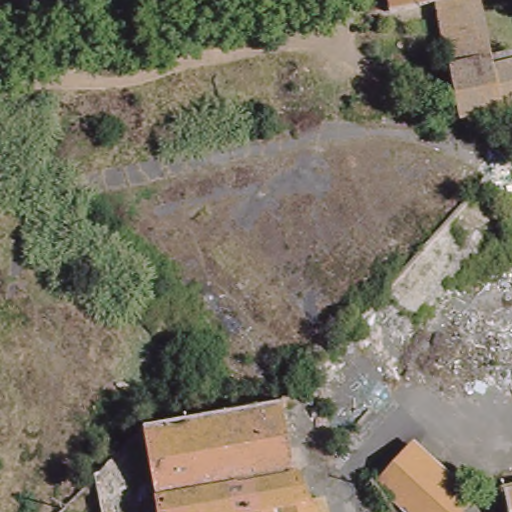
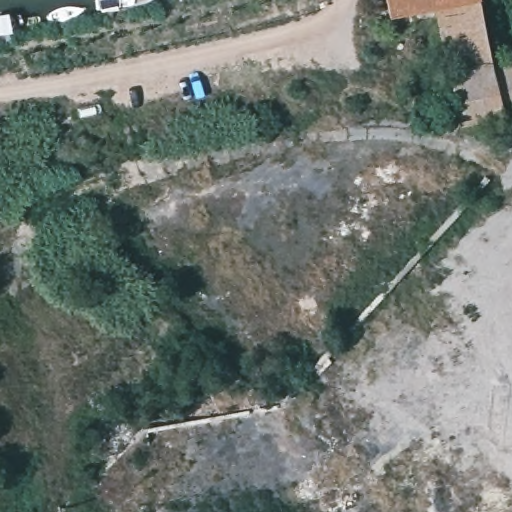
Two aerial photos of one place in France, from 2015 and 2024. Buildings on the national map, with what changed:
unchanged [(432,5),(395,12),(393,4),(392,0),(456,0),(432,5)]
unchanged [(493,59),(454,67),(450,50),(442,51),(432,5),(456,0),(481,0),(493,59)]
unchanged [(465,120),(454,67),(493,59),(498,58),(499,64),(512,62),(512,109),(465,120)]
demolished [(384,293),(470,204),(502,231),(415,324),(384,293)]
demolished [(100,512),(93,477),(141,429),(266,407),(278,406),(279,406),(292,474),(298,473),(316,509),(318,509),(319,512),(100,512)]
demolished [(400,512),(376,490),(414,450),(471,503),(463,512),(400,512)]
demolished [(512,488),(512,512),(508,512),(504,490),(512,488)]

